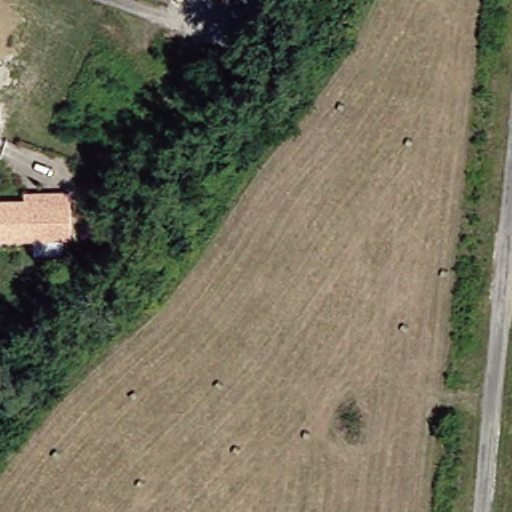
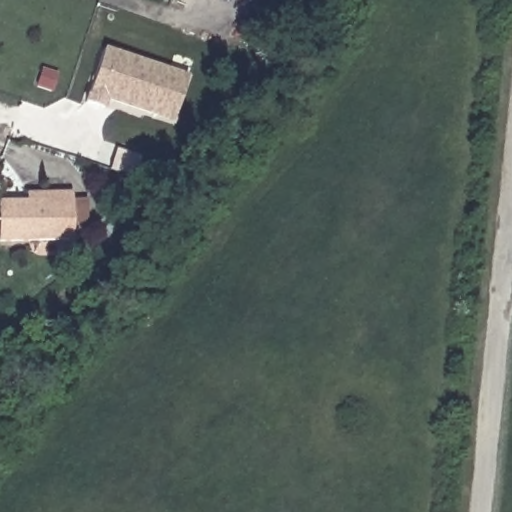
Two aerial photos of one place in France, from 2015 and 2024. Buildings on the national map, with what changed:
unchanged [(237,0),(245,0),(244,2),(237,0)]
new [(101,49),(185,77),(170,126),(104,105),(102,112),(82,104),(101,49)]
unchanged [(28,191),(43,189),(46,189),(73,186),(78,233),(43,237),(4,241),(0,205),(0,201),(28,198),(28,191)]

